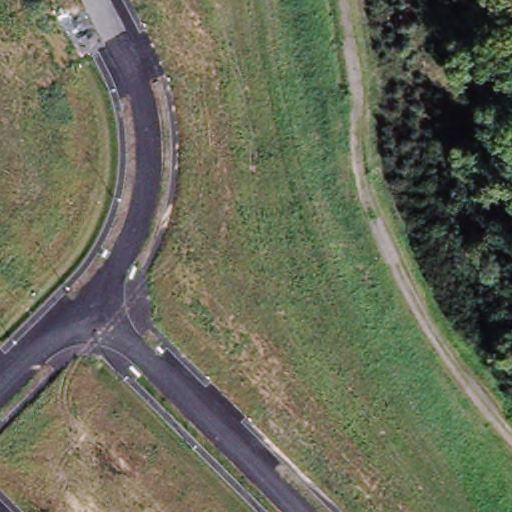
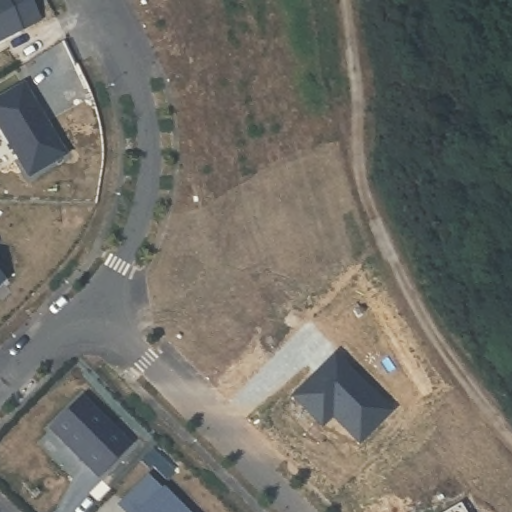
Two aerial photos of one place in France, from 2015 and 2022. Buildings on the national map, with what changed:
new [(27,31),(0,46),(0,0),(11,0),(27,31)]
new [(46,116),(45,117),(49,125),(51,124),(70,156),(34,179),(0,121),(0,103),(28,86),(46,116)]
new [(0,294),(0,272),(10,283),(0,294)]
new [(327,355),(383,410),(352,442),(325,415),(314,426),(285,397),(327,355)]
new [(87,397),(135,445),(103,476),(56,428),(87,397)]
new [(128,501),(153,476),(189,512),(140,512),(128,501)]
new [(452,504),(457,512),(439,512),(452,504)]

